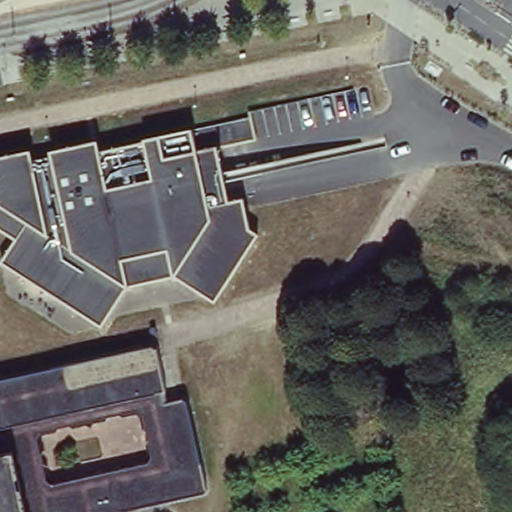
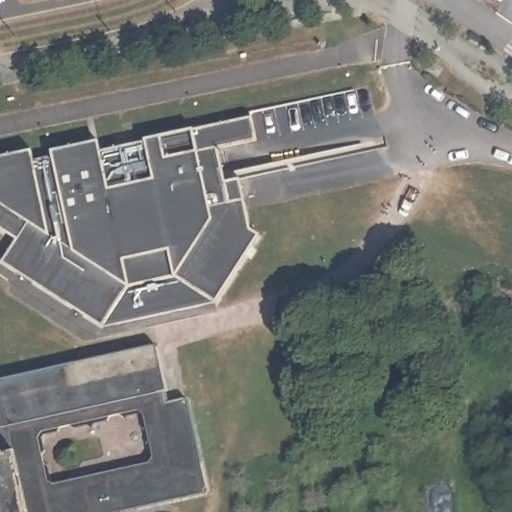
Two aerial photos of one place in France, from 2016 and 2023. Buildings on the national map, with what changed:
unchanged [(35,163),(54,159),(52,153),(96,144),(99,151),(192,132),(198,154),(215,152),(225,200),(242,200),(254,239),(219,300),(175,274),(119,284),(101,320),(2,261),(14,239),(0,231),(0,161),(32,152),(35,163)]
unchanged [(159,348),(168,392),(164,393),(167,403),(186,398),(190,401),(209,490),(207,494),(132,512),(0,512),(0,381),(155,345),(159,348)]

